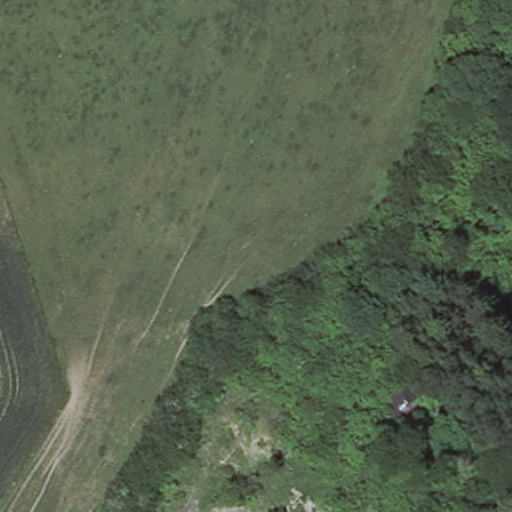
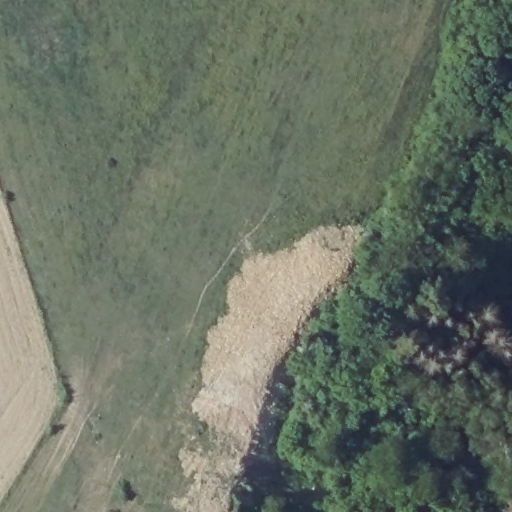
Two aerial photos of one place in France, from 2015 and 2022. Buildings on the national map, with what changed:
unchanged [(495,355),(482,372),(463,357),(476,340),(495,355)]
unchanged [(417,390),(392,411),(374,392),(399,371),(417,390)]

